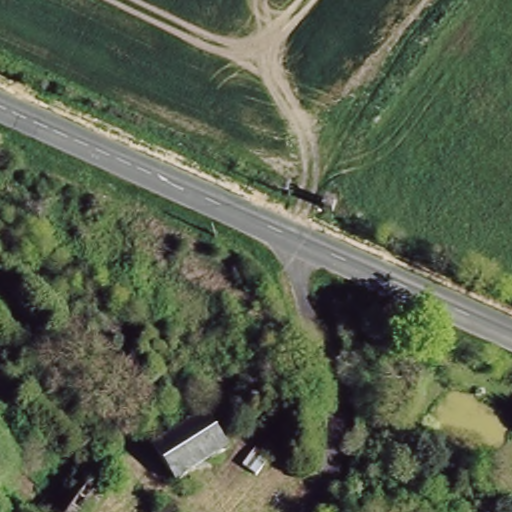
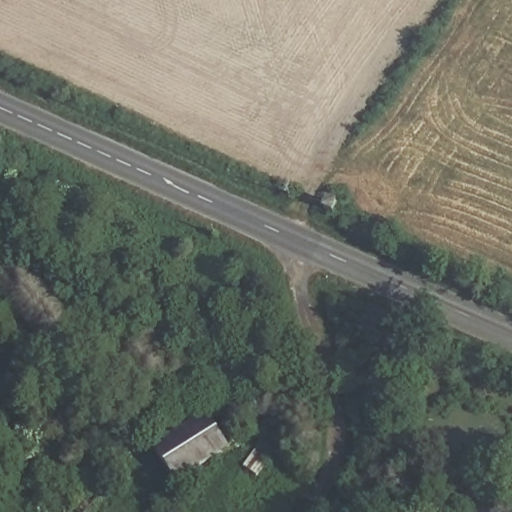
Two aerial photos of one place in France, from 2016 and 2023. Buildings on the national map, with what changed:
unchanged [(157,459),(189,427),(216,454),(184,487),(157,459)]
unchanged [(90,465),(107,477),(82,512),(57,512),(90,465)]

